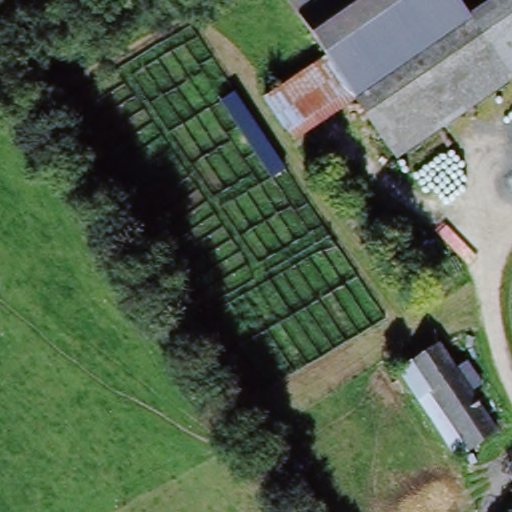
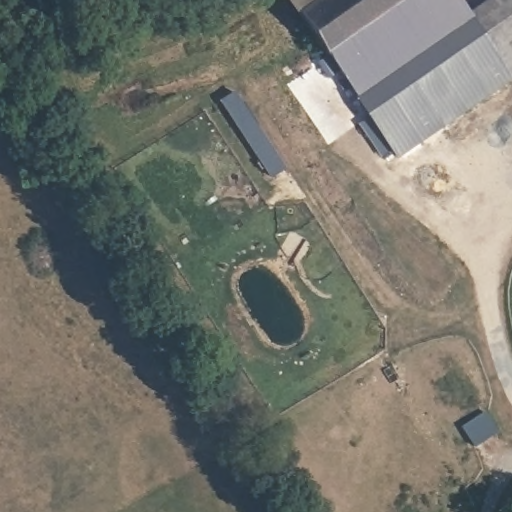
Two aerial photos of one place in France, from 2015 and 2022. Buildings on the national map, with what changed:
unchanged [(283,0),(326,0),(299,20),(283,0)]
unchanged [(326,0),(421,0),(331,65),(312,38),(299,20),(326,0)]
unchanged [(472,17),(356,100),(331,65),(421,0),(459,0),(472,17)]
unchanged [(512,13),(512,73),(484,33),(512,13)]
unchanged [(512,79),(400,160),(356,100),(472,17),(484,33),(512,73),(512,79)]
demolished [(437,346),(497,438),(456,464),(446,449),(396,372),(415,360),(437,346)]

